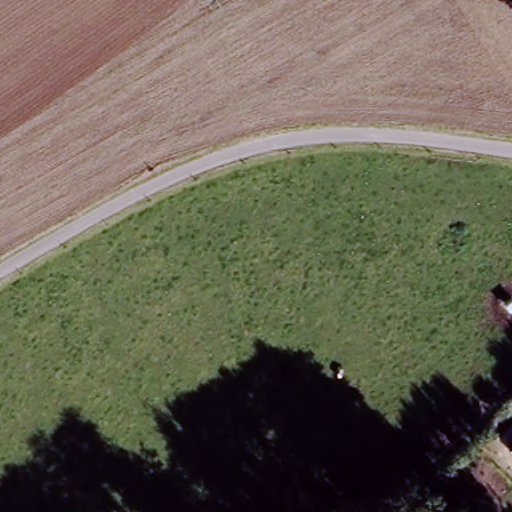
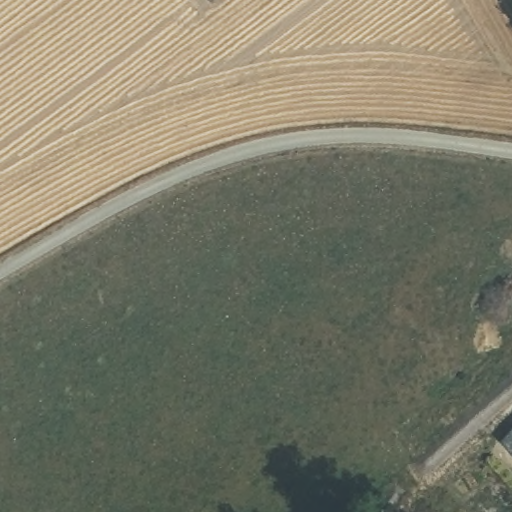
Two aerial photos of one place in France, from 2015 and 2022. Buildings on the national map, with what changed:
unchanged [(503,444),(498,440),(512,425),(512,454),(502,445),(503,444)]

